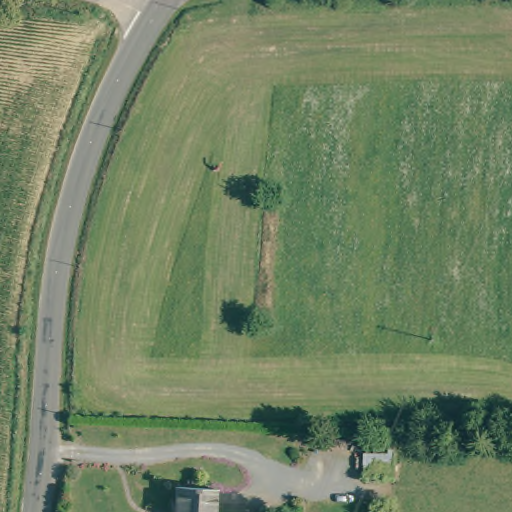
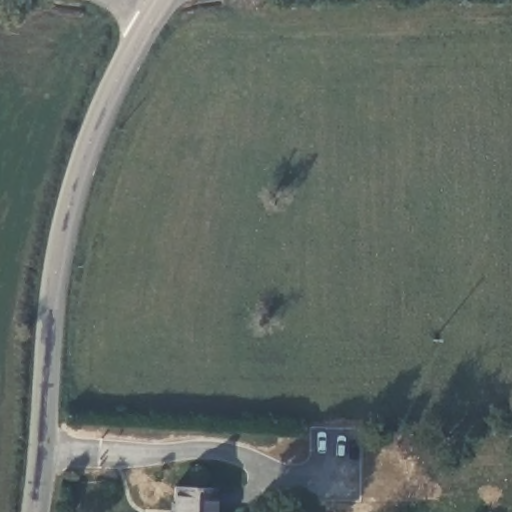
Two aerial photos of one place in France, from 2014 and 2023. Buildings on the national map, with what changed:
unchanged [(218,485),(217,505),(217,512),(174,512),(175,484),(218,485)]

